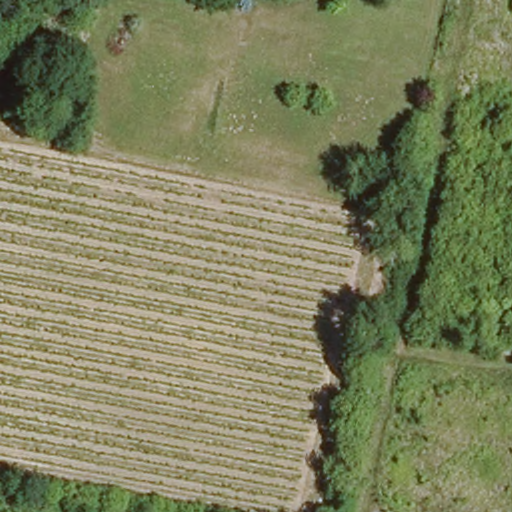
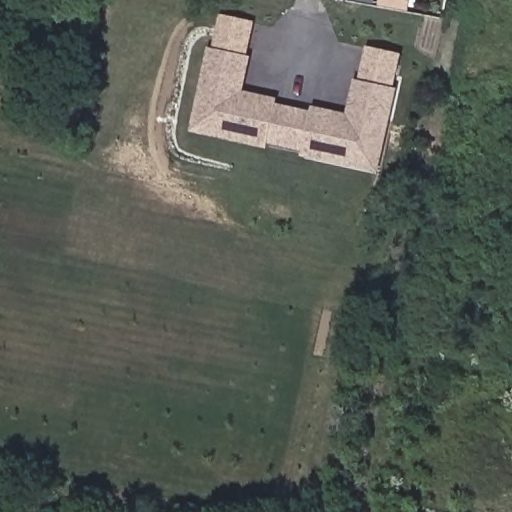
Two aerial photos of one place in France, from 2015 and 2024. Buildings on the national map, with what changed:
new [(348,0),(410,0),(408,11),(348,0)]
new [(248,56),(253,58),(245,90),(280,98),(278,104),(312,111),(347,113),(361,71),(363,71),(366,46),(403,54),(381,175),(302,158),(303,153),(269,145),(268,150),(192,134),(219,14),(255,23),(248,56)]

